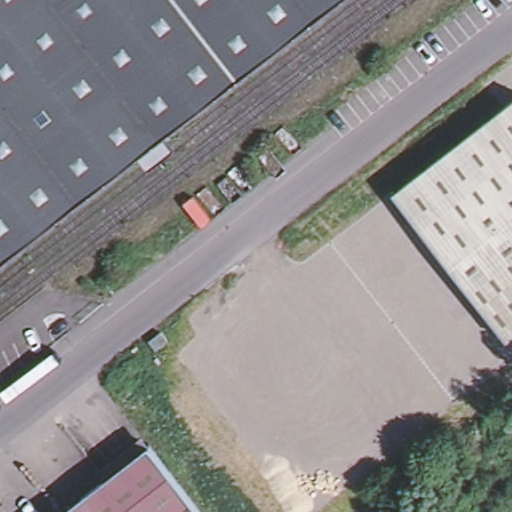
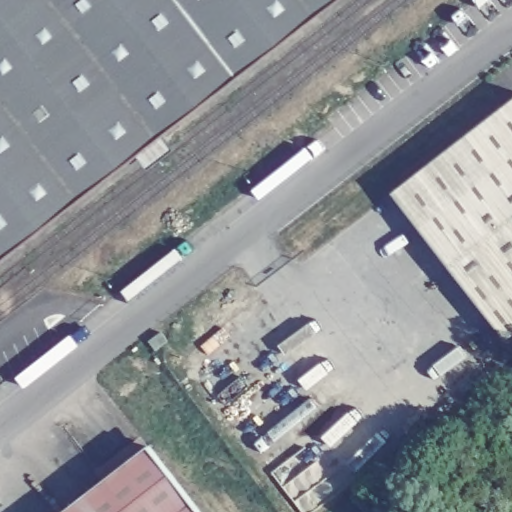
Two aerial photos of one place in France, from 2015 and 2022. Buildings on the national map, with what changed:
unchanged [(0,258),(0,0),(333,0),(0,258)]
unchanged [(511,339),(397,192),(512,104),(512,338),(511,339)]
unchanged [(152,342),(163,334),(166,338),(169,343),(157,351),(155,347),(152,342)]
unchanged [(200,512),(68,512),(152,449),(200,512)]

